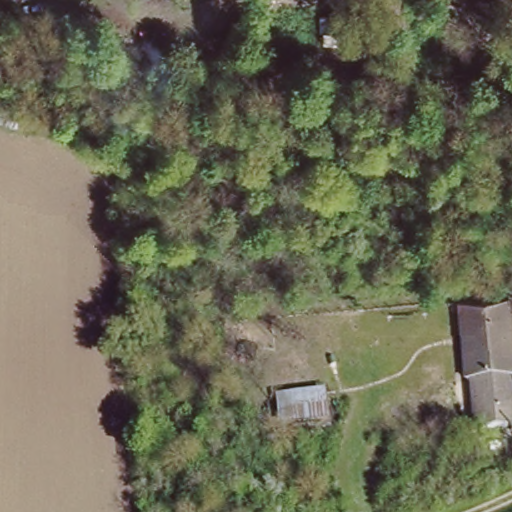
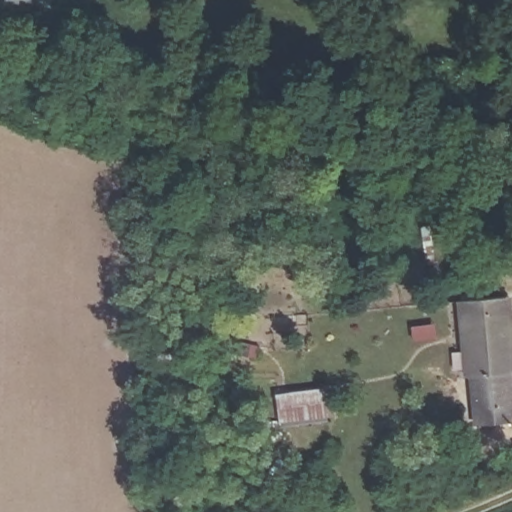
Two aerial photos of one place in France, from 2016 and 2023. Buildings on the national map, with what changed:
unchanged [(512,356),(512,378),(509,378),(512,419),(512,426),(474,429),(470,381),(465,382),(459,305),(507,301),(512,356)]
unchanged [(329,417),(278,420),(275,395),(325,390),(329,417)]

